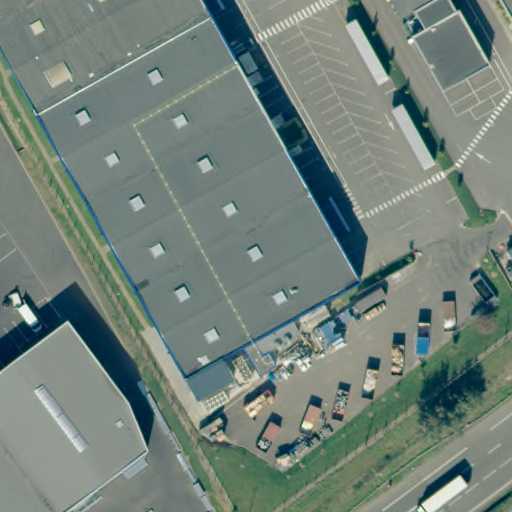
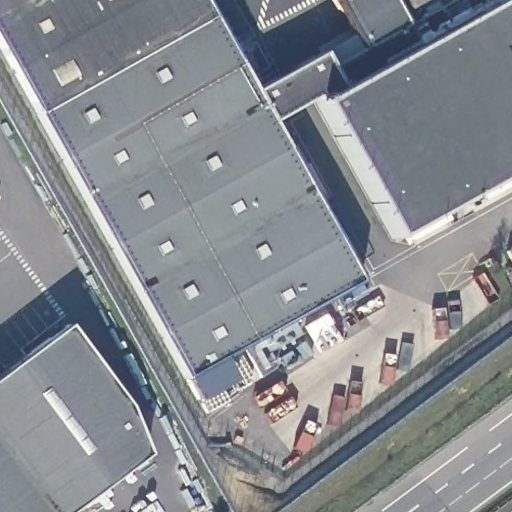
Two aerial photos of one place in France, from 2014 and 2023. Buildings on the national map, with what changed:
unchanged [(255,333),(184,373),(0,44),(0,0),(202,0),(357,276),(289,314),(296,328),(263,347),(255,333)]
new [(392,239),(317,100),(313,95),(270,120),(252,90),(322,53),(328,66),(360,48),(333,0),(497,0),(512,27),(512,167),(392,239)]
demolished [(454,8),(485,64),(437,91),(406,36),(430,23),(419,5),(396,17),(387,0),(446,0),(451,10),(454,8)]
unchanged [(497,0),(512,0),(512,27),(497,0)]
unchanged [(512,250),(512,257),(509,252),(512,250)]
unchanged [(126,405),(146,455),(69,512),(0,512),(0,376),(67,325),(126,405)]

